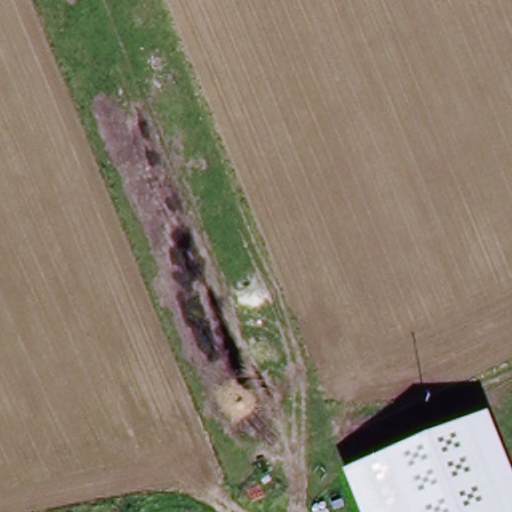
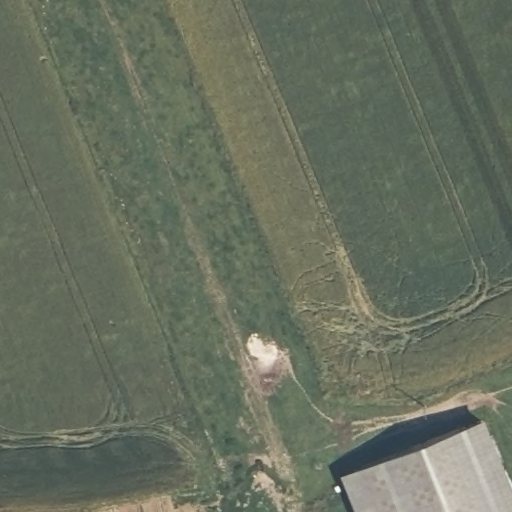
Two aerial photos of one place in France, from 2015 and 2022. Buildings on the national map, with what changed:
unchanged [(485,415),(512,484),(512,512),(355,512),(340,473),(485,415)]

